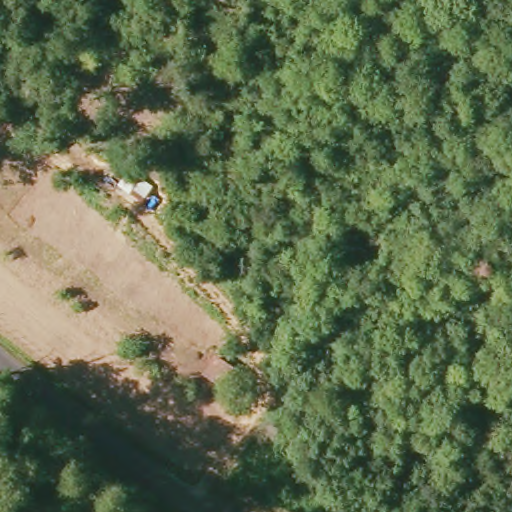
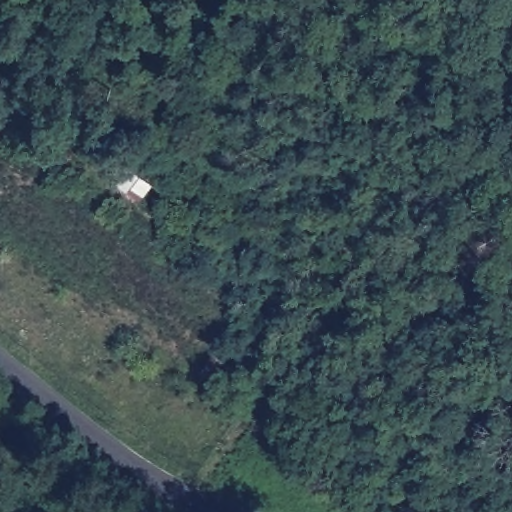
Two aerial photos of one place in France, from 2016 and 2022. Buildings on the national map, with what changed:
unchanged [(123,185),(132,171),(151,185),(142,199),(123,185)]
unchanged [(204,372),(216,356),(237,371),(226,387),(204,372)]

